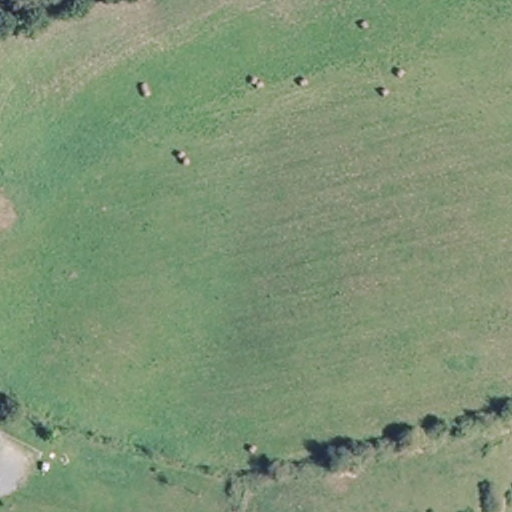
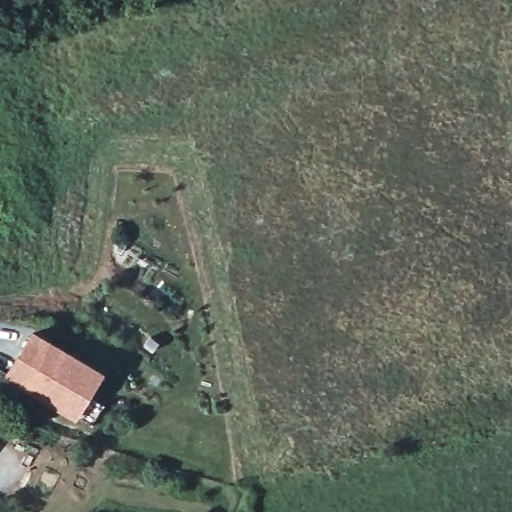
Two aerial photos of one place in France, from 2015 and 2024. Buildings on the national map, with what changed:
new [(33,327),(106,371),(75,423),(1,380),(33,327)]

